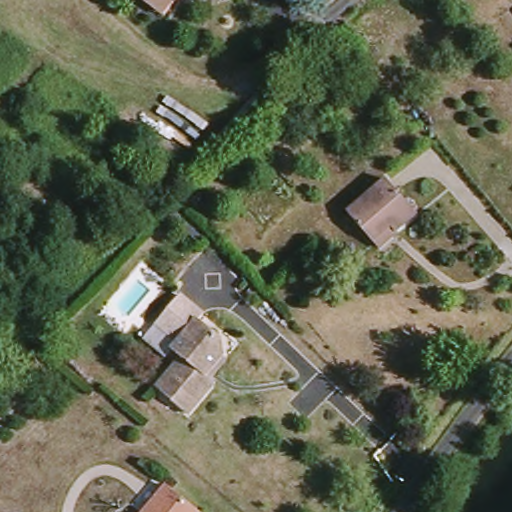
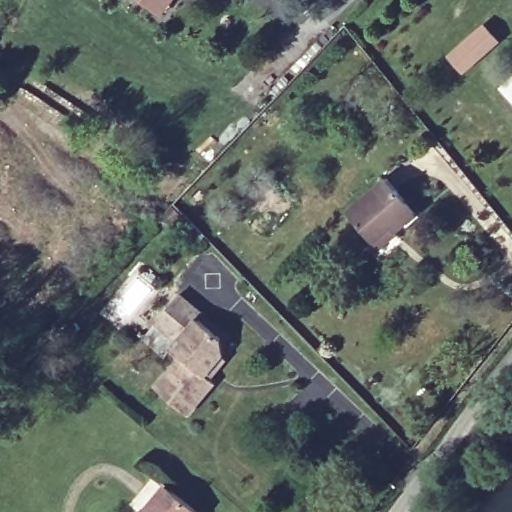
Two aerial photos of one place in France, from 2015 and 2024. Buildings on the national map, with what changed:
unchanged [(161,12),(144,0),(180,0),(167,17),(161,12)]
new [(485,24),(497,39),(464,69),(451,54),(485,24)]
unchanged [(378,244),(351,215),(392,177),(425,212),(405,232),(386,250),(378,244)]
unchanged [(217,381),(223,385),(197,417),(165,390),(191,360),(181,352),(187,344),(166,325),(190,297),(212,316),(207,322),(229,340),(230,358),(234,361),(217,381)]
unchanged [(201,512),(148,512),(169,487),(201,512)]

